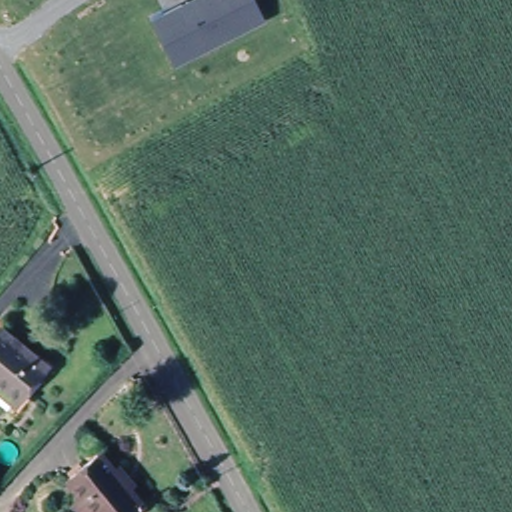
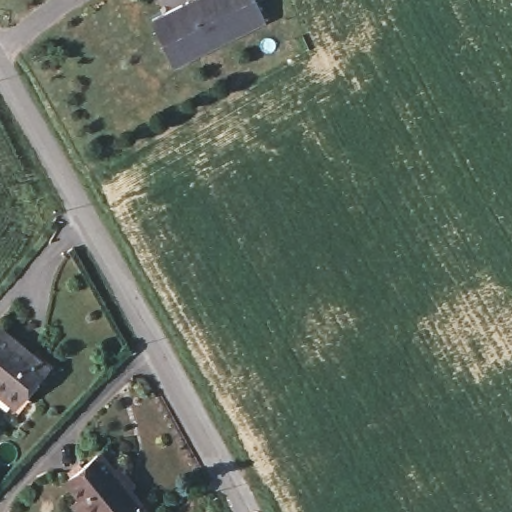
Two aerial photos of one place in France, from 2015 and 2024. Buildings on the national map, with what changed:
unchanged [(254,0),(265,23),(172,69),(151,21),(191,0),(254,0)]
unchanged [(0,398),(0,322),(45,361),(17,395),(23,400),(14,411),(0,398)]
unchanged [(89,494),(77,477),(107,451),(148,501),(133,512),(85,512),(78,504),(89,494)]

